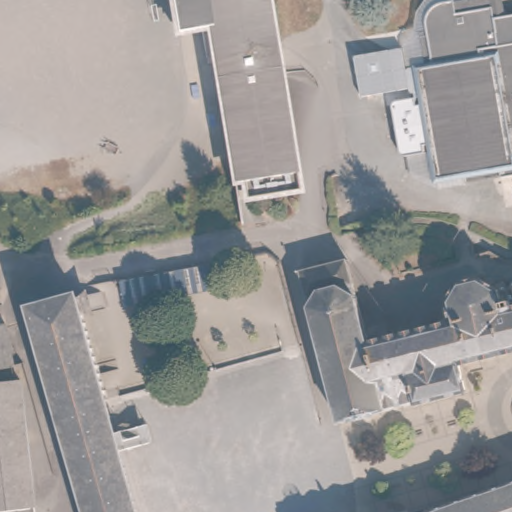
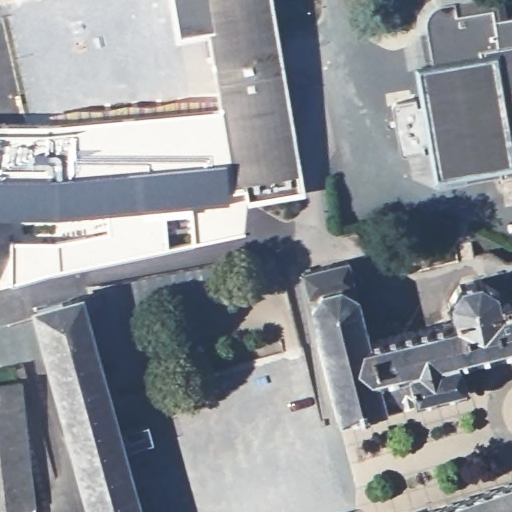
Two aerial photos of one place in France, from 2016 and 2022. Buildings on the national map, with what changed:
unchanged [(172,26),(168,0),(206,0),(210,20),(202,21),(172,26)]
unchanged [(292,183),(230,193),(202,21),(210,20),(206,0),(262,0),(292,183)]
unchanged [(469,187),(467,177),(441,182),(437,156),(417,159),(415,159),(412,159),(408,158),(405,155),(403,152),(402,143),(396,112),(399,109),(401,107),(404,105),(408,104),(427,101),(423,72),(435,70),(427,28),(428,24),(430,18),(433,12),(438,9),(445,6),(452,5),(480,0),(503,0),(506,20),(512,19),(512,179),(505,180),(469,187)]
new [(398,49),(405,88),(362,95),(355,57),(398,49)]
new [(48,122),(216,108),(225,163),(230,193),(230,201),(223,202),(229,236),(193,245),(60,272),(0,290),(0,122),(48,122)]
unchanged [(347,263),(370,344),(388,412),(387,415),(343,426),(303,275),(347,263)]
unchanged [(468,395),(419,409),(417,405),(388,412),(370,344),(390,338),(385,317),(408,311),(414,332),(455,322),(450,304),(462,287),(484,281),(500,293),(505,311),(512,309),(512,356),(461,368),(468,395)]
unchanged [(144,512),(98,512),(77,438),(71,417),(42,311),(85,301),(144,512)]
unchanged [(11,327),(19,363),(0,367),(0,329),(11,327)]
unchanged [(23,386),(39,512),(0,512),(0,389),(23,386)]
unchanged [(512,512),(435,512),(512,486),(512,512)]

